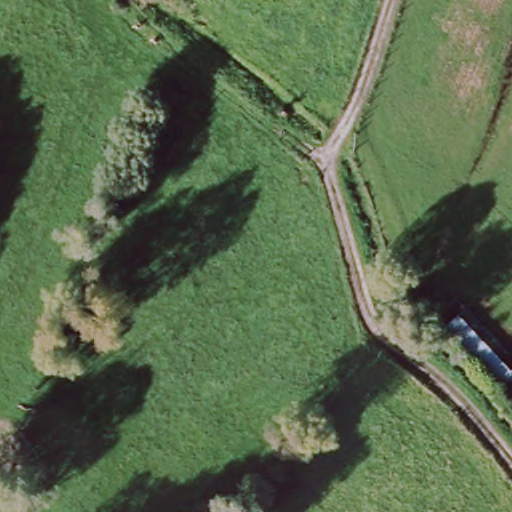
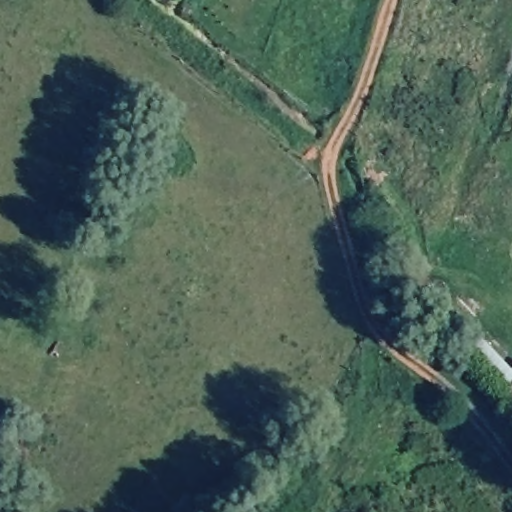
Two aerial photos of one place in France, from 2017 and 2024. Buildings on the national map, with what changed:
unchanged [(512,357),(512,394),(508,397),(491,377),(431,311),(445,299),(502,366),(512,357)]

